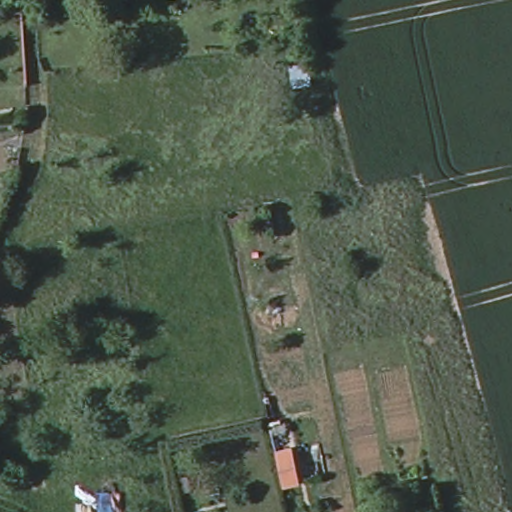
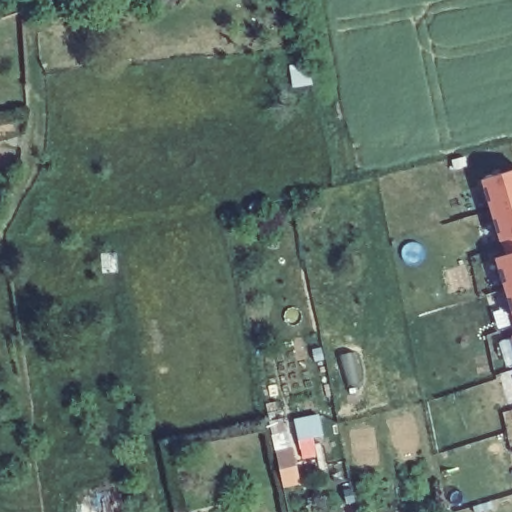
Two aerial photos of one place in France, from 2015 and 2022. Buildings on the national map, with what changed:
unchanged [(124,0),(137,0),(137,3),(124,0)]
new [(512,171),(512,318),(495,260),(505,255),(503,241),(499,241),(482,180),(512,171)]

